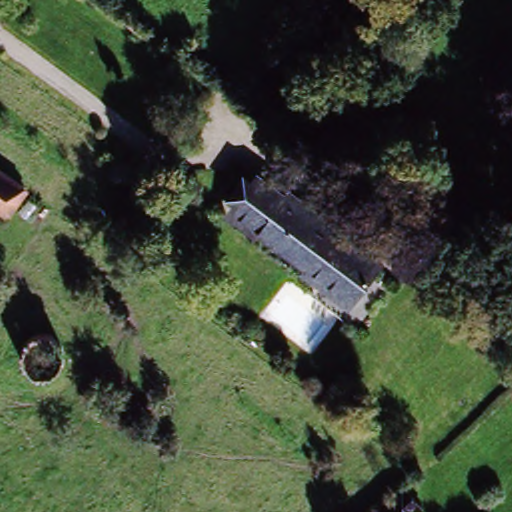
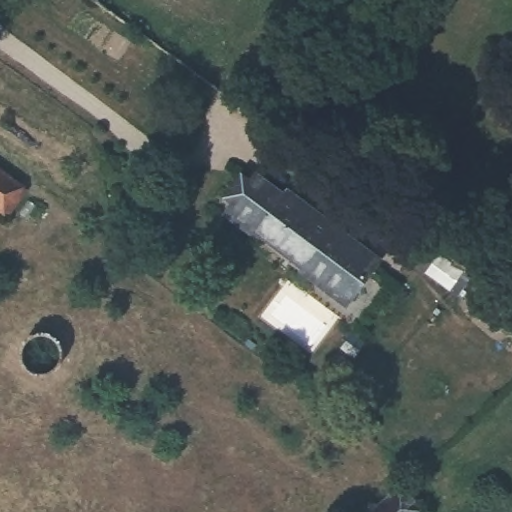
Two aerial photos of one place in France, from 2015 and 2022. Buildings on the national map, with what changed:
unchanged [(24,192),(6,216),(0,212),(0,177),(24,192)]
unchanged [(240,181),(360,266),(336,298),(216,214),(240,181)]
unchanged [(62,370),(62,371),(62,372),(62,373),(62,374),(62,375),(62,376),(62,377),(61,377),(61,378),(61,379),(61,380),(60,380),(60,381),(60,382),(59,382),(59,383),(58,384),(58,385),(57,385),(57,386),(56,386),(56,387),(55,387),(55,388),(54,388),(54,389),(53,389),(52,390),(52,391),(51,391),(50,392),(49,392),(48,393),(47,393),(46,393),(46,394),(45,394),(44,394),(43,394),(43,395),(42,395),(41,395),(40,395),(39,395),(38,395),(37,395),(35,395),(34,395),(33,395),(32,395),(31,395),(30,394),(29,394),(28,394),(28,393),(27,393),(26,393),(25,392),(24,392),(23,391),(22,391),(22,390),(21,390),(20,389),(19,388),(18,387),(17,386),(17,385),(16,385),(16,384),(15,384),(15,383),(14,382),(14,381),(13,380),(13,379),(12,378),(12,377),(12,376),(11,376),(11,375),(11,374),(11,373),(11,372),(11,371),(11,370),(11,367),(11,366),(11,365),(11,364),(11,363),(11,362),(12,361),(12,360),(12,359),(13,359),(13,358),(13,357),(14,356),(14,355),(15,355),(15,354),(16,353),(16,352),(17,352),(17,351),(18,351),(18,350),(19,350),(20,349),(21,348),(22,348),(22,347),(23,347),(24,346),(25,346),(26,345),(27,345),(28,345),(28,344),(29,344),(30,344),(31,344),(32,344),(33,343),(34,343),(35,343),(36,343),(37,343),(38,343),(39,343),(40,344),(41,344),(42,344),(43,344),(44,344),(44,345),(45,345),(46,345),(47,346),(48,346),(49,347),(50,348),(51,348),(52,349),(54,351),(55,351),(55,352),(56,352),(56,353),(57,353),(57,354),(58,355),(58,356),(59,356),(59,357),(59,358),(60,358),(60,359),(60,360),(61,360),(61,361),(61,362),(61,363),(62,363),(62,364),(62,365),(62,366),(62,367),(62,368),(62,369),(62,370)]
unchanged [(434,497),(418,512),(369,512),(410,474),(434,497)]

